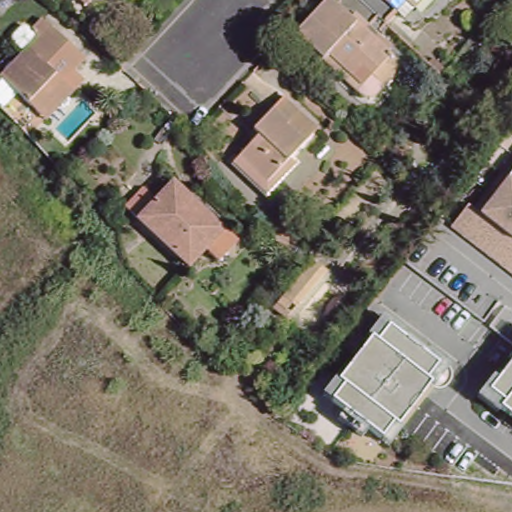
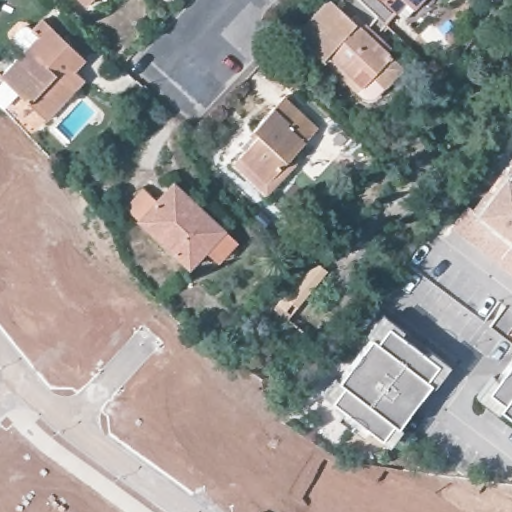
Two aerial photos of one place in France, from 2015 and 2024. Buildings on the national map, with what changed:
unchanged [(86,1),(84,0),(87,0),(86,1)]
unchanged [(370,85),(374,81),(363,71),(361,73),(359,71),(348,84),(295,35),(327,0),(330,0),(335,5),(352,20),(356,15),(368,25),(379,35),(375,40),(405,69),(403,71),(409,76),(393,92),(388,88),(385,90),(382,87),(378,92),(370,85)]
unchanged [(404,25),(395,19),(376,0),(426,0),(404,25)]
unchanged [(0,77),(0,76),(38,37),(31,31),(43,19),(67,42),(45,65),(74,92),(46,121),(0,77)]
unchanged [(45,65),(67,42),(96,72),(74,92),(45,65)]
unchanged [(238,165),(259,141),(253,136),(259,130),(292,95),(294,96),(292,100),(323,129),(295,159),(302,165),(273,196),(238,165)]
unchanged [(448,226),(465,204),(479,214),(512,171),(512,272),(448,226)]
unchanged [(190,267),(138,220),(174,184),(224,231),(190,267)]
unchanged [(326,271),(297,307),(292,304),(286,311),(277,304),(313,261),(326,271)]
unchanged [(325,394),(385,315),(447,367),(388,445),(325,394)]
unchanged [(482,393),(512,356),(512,417),(482,393)]

